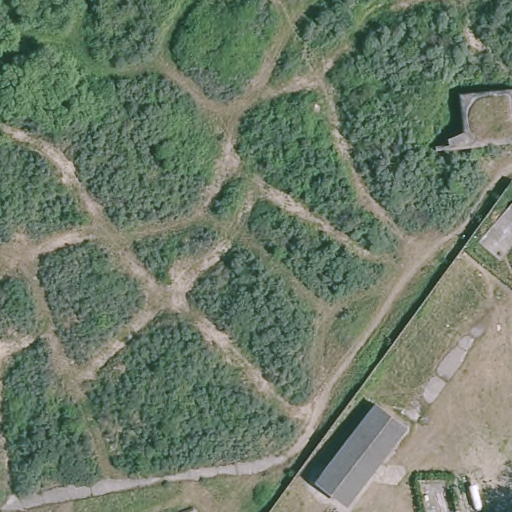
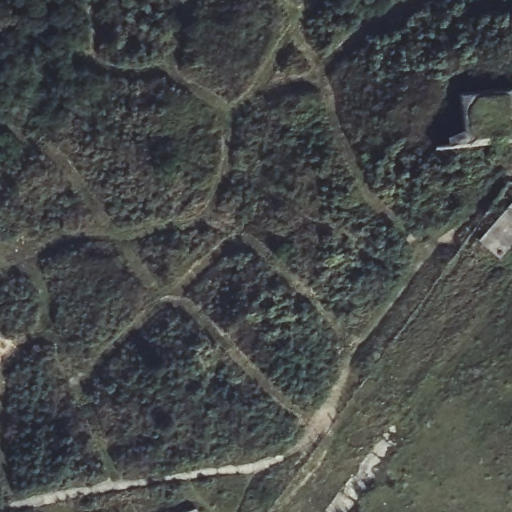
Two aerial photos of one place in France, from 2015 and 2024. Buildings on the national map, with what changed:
unchanged [(449,137),(464,130),(461,95),(511,89),(512,99),(512,141),(450,148),(449,137)]
demolished [(374,401),(408,427),(346,506),(315,482),(374,401)]
unchanged [(193,512),(188,512),(193,510),(193,512)]

